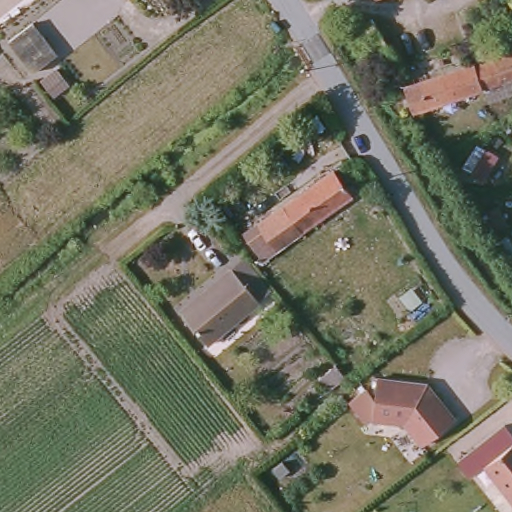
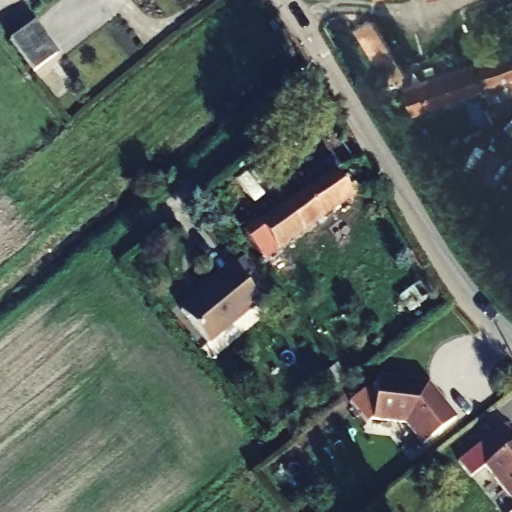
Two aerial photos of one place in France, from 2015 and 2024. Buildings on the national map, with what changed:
unchanged [(510,5),(512,5),(512,10),(510,5)]
unchanged [(407,66),(388,78),(356,26),(375,14),(407,66)]
unchanged [(32,18),(55,51),(36,67),(10,34),(32,18)]
unchanged [(421,107),(410,81),(512,51),(512,97),(495,102),(488,90),(421,107)]
unchanged [(262,256),(243,232),(330,170),(348,197),(262,256)]
unchanged [(183,305),(237,265),(262,300),(210,340),(183,305)]
unchanged [(336,387),(325,374),(341,363),(350,375),(336,387)]
unchanged [(451,421),(420,443),(405,422),(372,417),(377,378),(425,385),(451,421)]
unchanged [(482,467),(512,445),(512,502),(482,467)]

